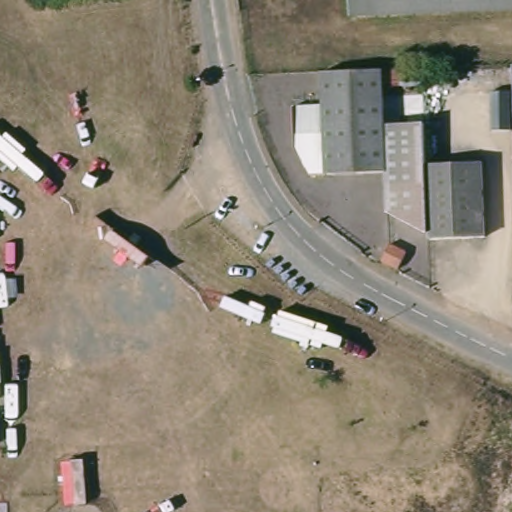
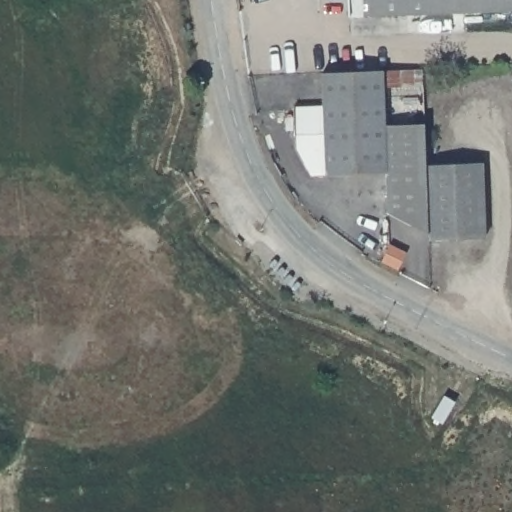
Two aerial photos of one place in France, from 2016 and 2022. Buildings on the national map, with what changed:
unchanged [(349,15),(348,0),(512,0),(512,12),(349,15)]
unchanged [(319,103),(319,69),(378,68),(381,170),(305,172),(297,152),(293,104),(319,103)]
unchanged [(424,121),(424,163),(427,238),(383,213),(381,170),(379,124),(424,121)]
unchanged [(482,161),(483,237),(427,238),(424,163),(482,161)]
unchanged [(406,254),(398,273),(379,264),(388,245),(406,254)]

